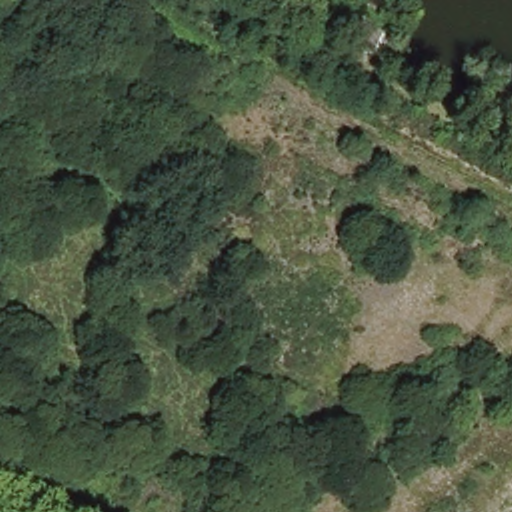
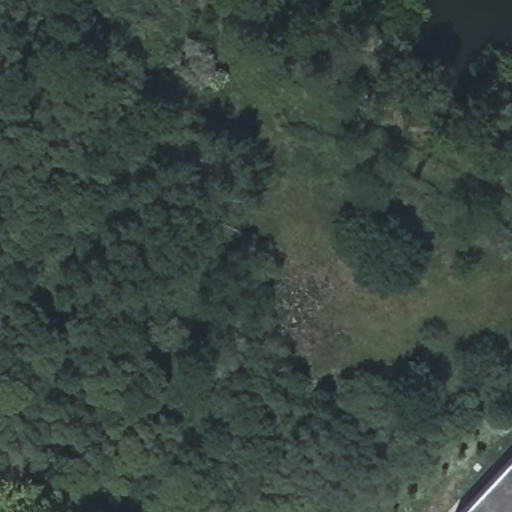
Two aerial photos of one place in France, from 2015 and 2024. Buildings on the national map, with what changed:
new [(461,512),(512,457),(512,512),(461,512)]

